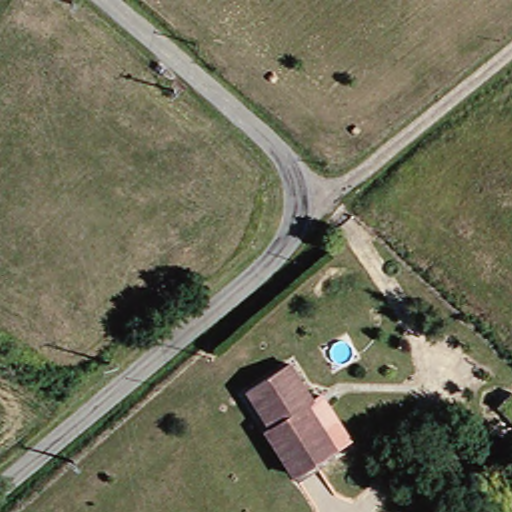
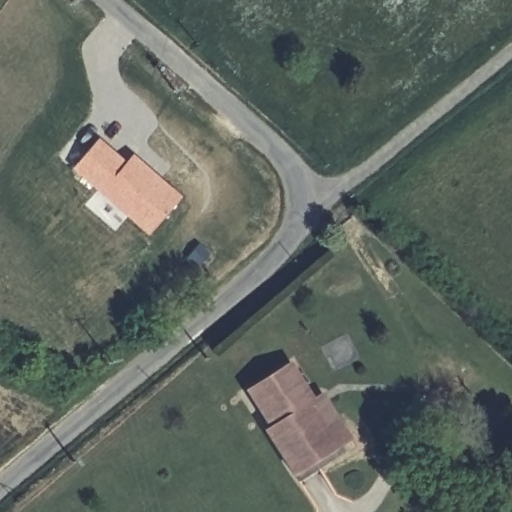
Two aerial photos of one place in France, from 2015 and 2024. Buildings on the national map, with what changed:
new [(126,161),(133,154),(182,196),(147,235),(71,169),(100,137),(126,161)]
unchanged [(287,366),(308,401),(303,404),(328,445),(288,470),(261,428),(267,425),(246,392),(287,366)]

